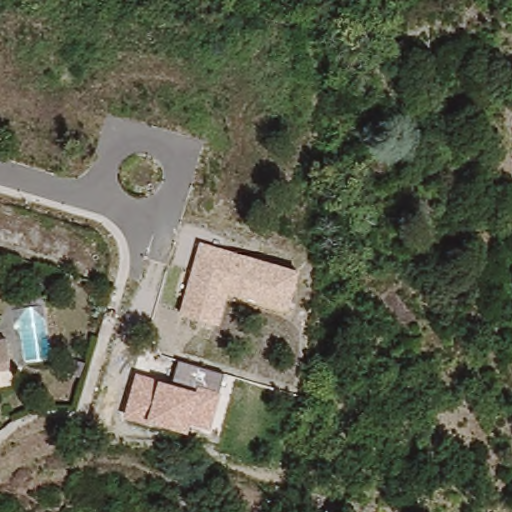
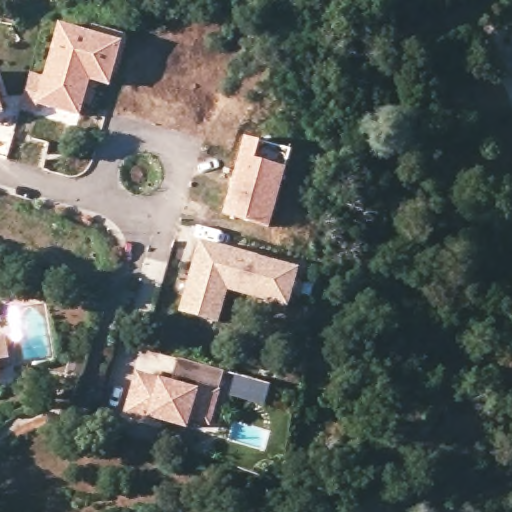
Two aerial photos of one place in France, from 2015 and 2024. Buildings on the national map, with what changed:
new [(43,86),(60,35),(121,54),(108,96),(88,90),(77,125),(36,113),(33,122),(18,117),(29,82),(43,86)]
new [(129,46),(117,85),(112,84),(121,54),(90,44),(92,35),(129,46)]
new [(0,113),(0,101),(3,112),(0,113)]
new [(227,223),(250,146),(295,160),(272,236),(227,223)]
unchanged [(301,268),(290,310),(228,293),(220,325),(178,313),(200,240),(301,268)]
unchanged [(5,370),(0,371),(0,342),(3,342),(5,370)]
unchanged [(225,371),(220,391),(222,393),(212,429),(190,425),(187,431),(155,421),(154,425),(126,415),(137,371),(172,380),(178,358),(225,371)]
unchanged [(198,494),(194,512),(163,512),(167,489),(198,494)]

